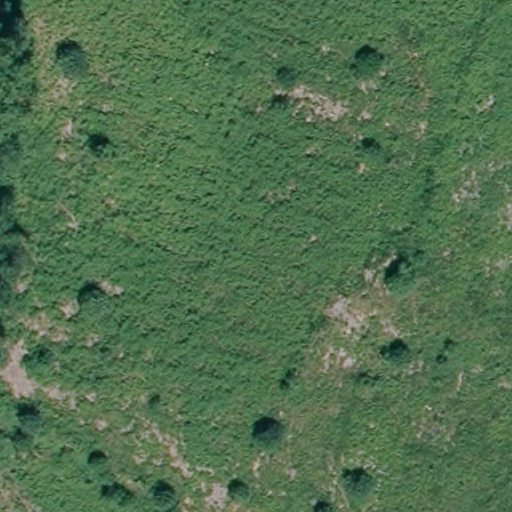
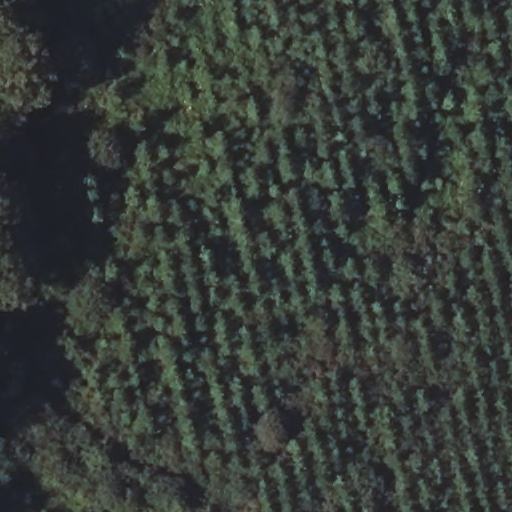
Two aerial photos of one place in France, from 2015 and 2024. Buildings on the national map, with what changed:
[]

